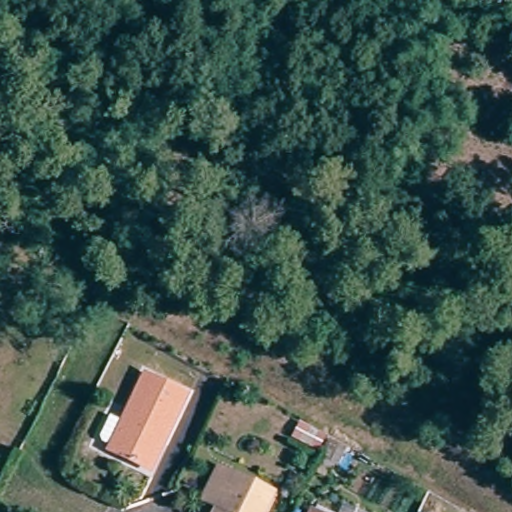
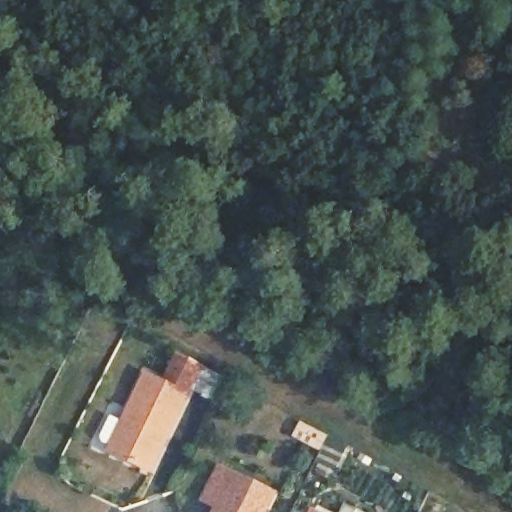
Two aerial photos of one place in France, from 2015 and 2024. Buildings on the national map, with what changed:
unchanged [(106,449),(139,375),(180,394),(148,468),(106,449)]
unchanged [(321,433),(315,449),(291,439),(299,423),(321,433)]
unchanged [(330,439),(348,448),(338,467),(336,465),(333,471),(317,463),(330,439)]
unchanged [(266,512),(217,512),(204,506),(219,472),(235,479),(273,496),(266,512)]
unchanged [(308,511),(311,512),(308,512),(308,511)]

